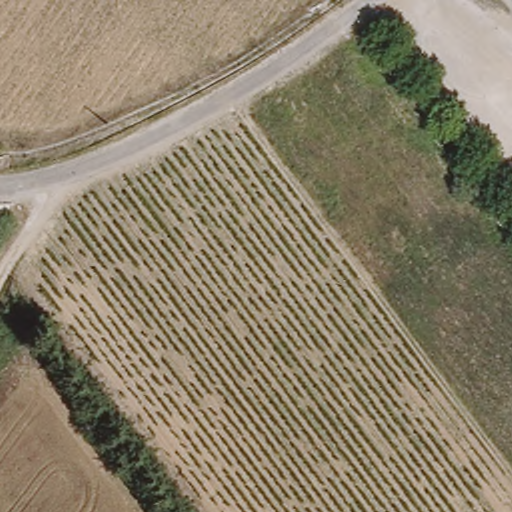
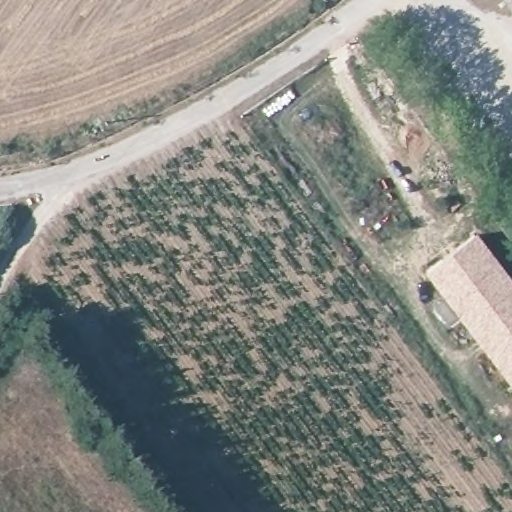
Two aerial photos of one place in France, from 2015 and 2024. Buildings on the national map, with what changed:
new [(512,282),(512,389),(426,273),(477,235),(512,282)]

